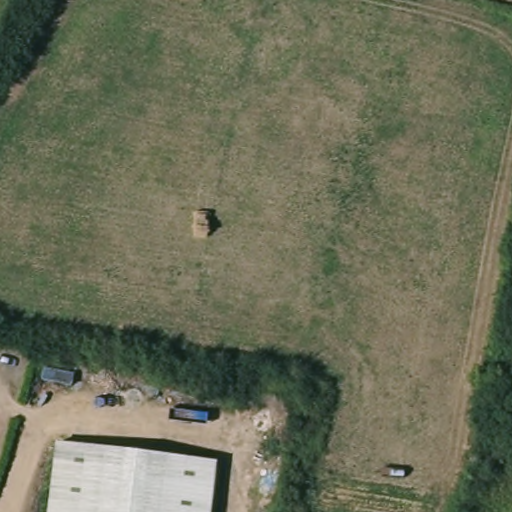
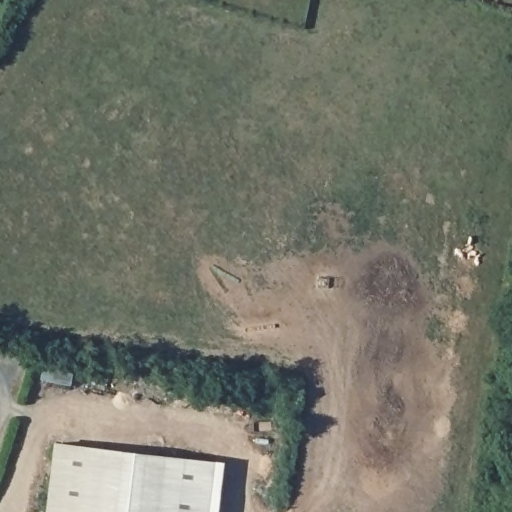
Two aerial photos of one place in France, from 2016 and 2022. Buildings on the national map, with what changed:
unchanged [(220,461),(214,512),(53,512),(62,440),(220,461)]

